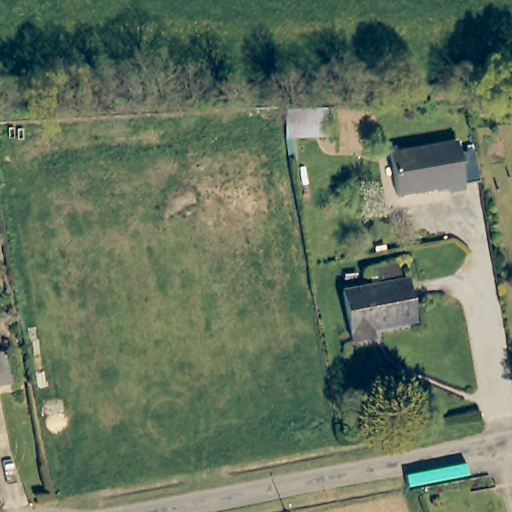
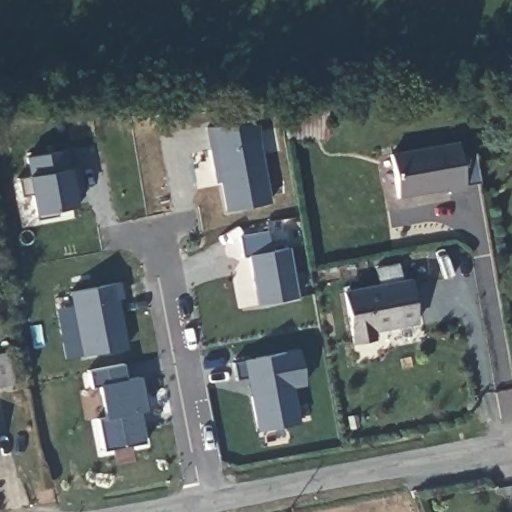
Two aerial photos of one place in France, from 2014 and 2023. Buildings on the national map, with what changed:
unchanged [(280,141),(281,114),(321,113),(322,140),(280,141)]
new [(267,204),(225,211),(217,172),(210,173),(202,126),(252,122),(267,204)]
unchanged [(450,192),(399,202),(394,173),(392,160),(460,146),(462,159),(476,156),(482,185),(468,188),(469,194),(451,198),(450,192)]
new [(69,167),(77,166),(83,193),(74,196),(76,205),(54,210),(57,215),(36,219),(33,214),(29,193),(19,195),(16,177),(26,174),(24,156),(65,149),(69,167)]
new [(267,229),(272,250),(288,248),(298,297),(259,304),(250,253),(242,255),(240,234),(267,229)]
new [(124,297),(118,298),(127,345),(81,355),(68,291),(120,281),(124,297)]
unchanged [(347,346),(339,294),(401,282),(409,325),(370,332),(372,342),(347,346)]
new [(306,386),(293,388),(300,422),(256,431),(246,376),(236,379),(233,361),(297,347),(306,386)]
unchanged [(0,359),(8,358),(15,390),(0,393),(0,359)]
new [(126,378),(140,375),(146,410),(138,412),(143,441),(103,450),(97,420),(105,418),(98,385),(91,386),(88,370),(123,364),(126,378)]

